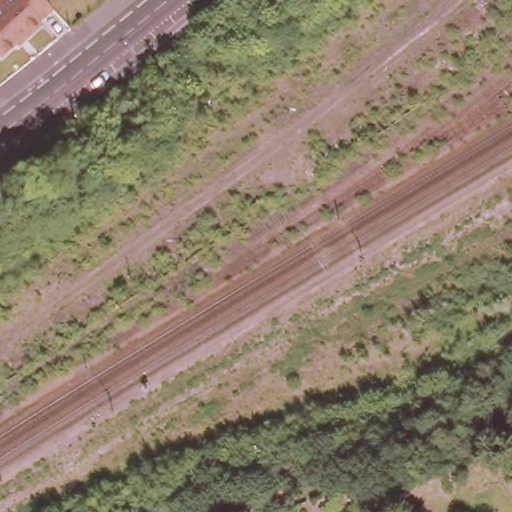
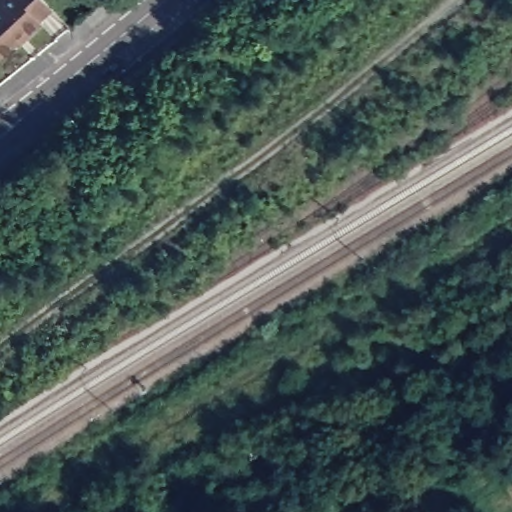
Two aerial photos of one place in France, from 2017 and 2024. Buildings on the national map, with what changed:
unchanged [(55,4),(1,57),(0,56),(0,0),(50,0),(55,4)]

